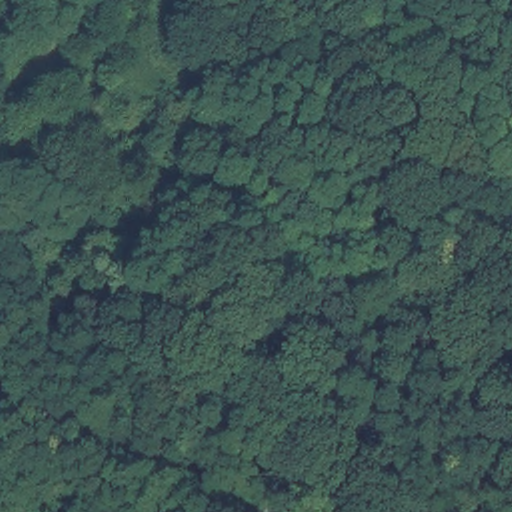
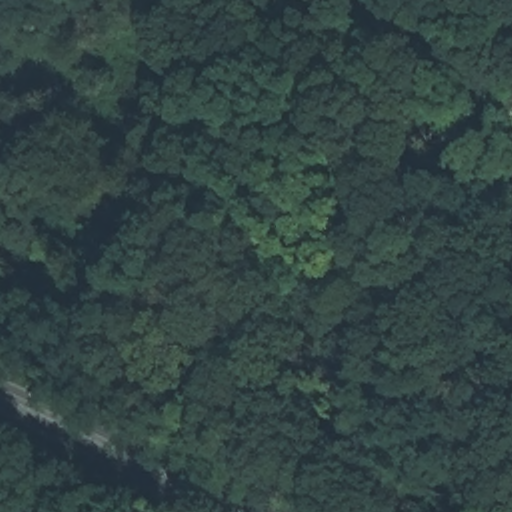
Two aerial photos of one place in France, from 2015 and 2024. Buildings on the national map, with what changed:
unchanged [(115,194),(116,217),(93,218),(94,195),(115,194)]

